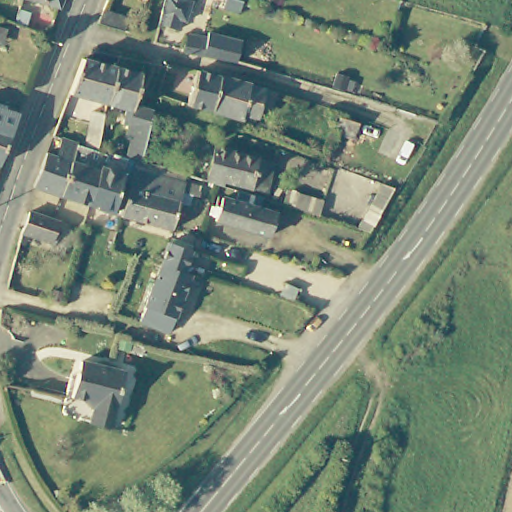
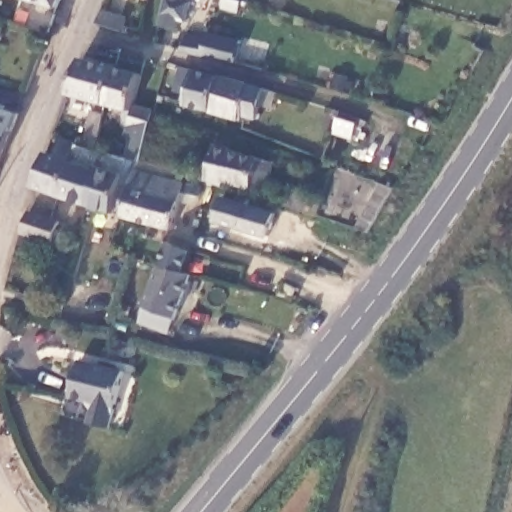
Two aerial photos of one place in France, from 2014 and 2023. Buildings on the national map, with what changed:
unchanged [(33,0),(58,0),(55,6),(33,0)]
unchanged [(187,22),(180,20),(178,30),(158,24),(164,0),(191,0),(192,0),(187,22)]
unchanged [(235,0),(233,5),(218,1),(218,0),(235,0)]
unchanged [(96,21),(102,9),(126,18),(122,29),(96,21)]
unchanged [(18,10),(40,16),(35,33),(12,26),(18,10)]
unchanged [(217,52),(194,47),(184,44),(192,29),(211,34),(231,40),(227,54),(217,52)]
unchanged [(101,99),(101,104),(64,93),(66,88),(76,59),(109,68),(101,99)]
unchanged [(139,144),(135,160),(133,160),(125,159),(122,159),(120,159),(119,159),(117,158),(125,136),(118,134),(121,125),(114,123),(118,109),(101,104),(101,99),(109,68),(136,74),(127,104),(148,109),(148,111),(139,144)]
unchanged [(272,99),(270,108),(260,105),(256,118),(242,114),(241,120),(211,112),(211,110),(189,103),(197,71),(220,77),(233,80),(273,90),(278,91),(276,100),(272,99)]
unchanged [(13,124),(11,128),(0,160),(0,162),(0,109),(16,114),(13,124)]
unchanged [(70,144),(78,146),(85,111),(99,114),(92,150),(98,152),(82,204),(52,195),(70,144)]
unchanged [(357,124),(352,139),(332,132),(337,116),(357,124)]
unchanged [(50,154),(55,139),(69,143),(70,144),(52,195),(28,187),(41,151),(50,154)]
unchanged [(210,184),(201,181),(210,146),(224,150),(225,153),(268,163),(262,190),(247,187),(244,189),(219,182),(217,186),(210,184)]
unchanged [(108,213),(82,204),(98,152),(108,155),(117,158),(119,159),(120,159),(108,213)]
unchanged [(117,215),(129,170),(177,184),(178,182),(204,189),(203,198),(188,194),(184,205),(173,202),(165,229),(117,215)]
unchanged [(283,213),(278,229),(275,229),(271,244),(260,241),(263,232),(206,216),(213,193),(283,213)]
unchanged [(49,219),(57,223),(51,243),(19,232),(28,212),(49,219)]
unchanged [(141,323),(162,265),(170,243),(191,250),(183,272),(192,274),(171,334),(141,323)]
unchanged [(94,412),(87,403),(72,399),(81,363),(126,374),(112,431),(90,426),(94,412)]

